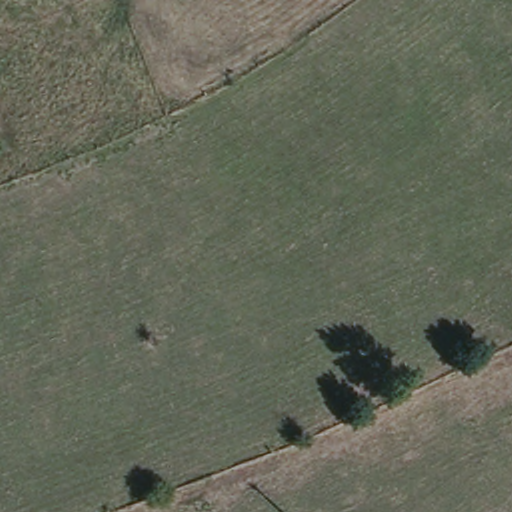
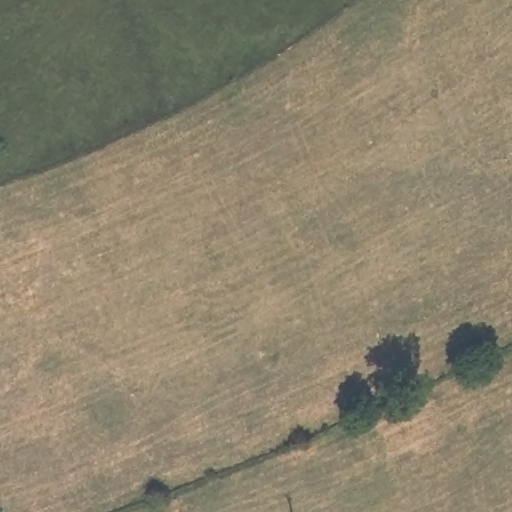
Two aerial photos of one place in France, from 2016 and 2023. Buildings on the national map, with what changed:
[]

